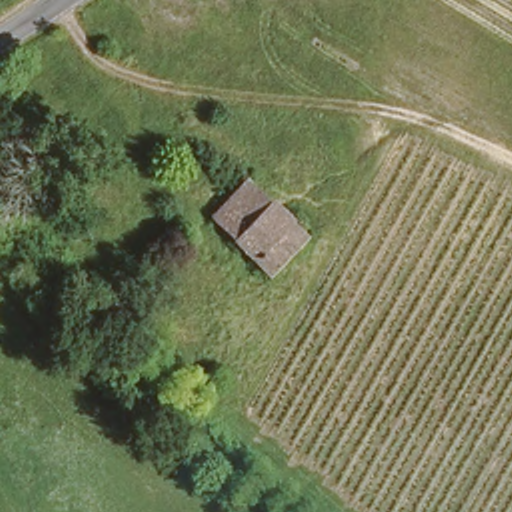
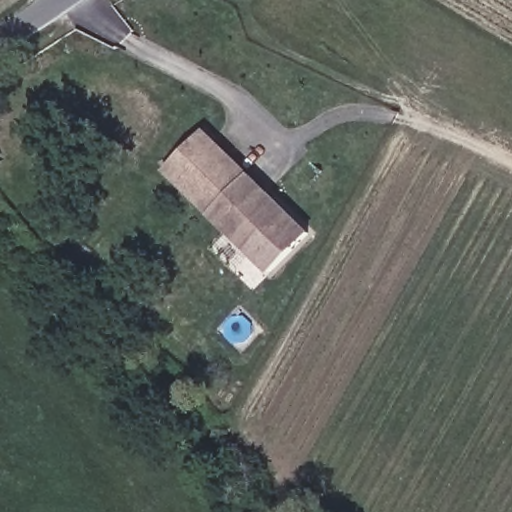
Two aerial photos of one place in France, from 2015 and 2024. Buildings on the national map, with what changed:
new [(204,132),(249,175),(242,181),(210,213),(165,170),(204,132)]
unchanged [(242,181),(249,175),(305,233),(264,272),(210,213),(242,181)]

